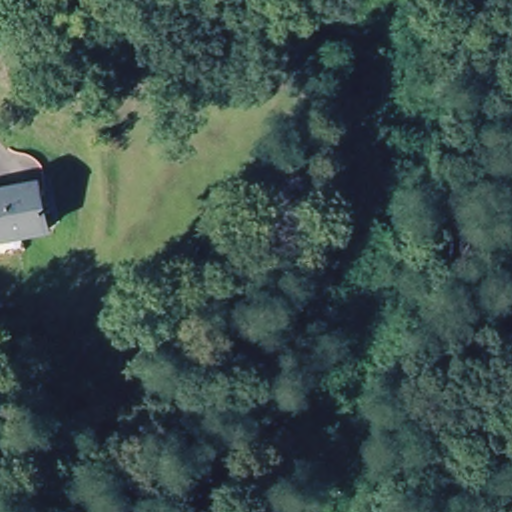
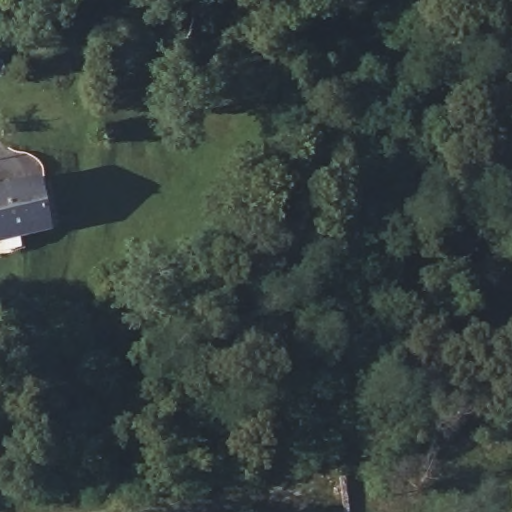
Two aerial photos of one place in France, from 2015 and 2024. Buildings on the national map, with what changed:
unchanged [(0,192),(41,184),(50,230),(0,240),(0,192)]

